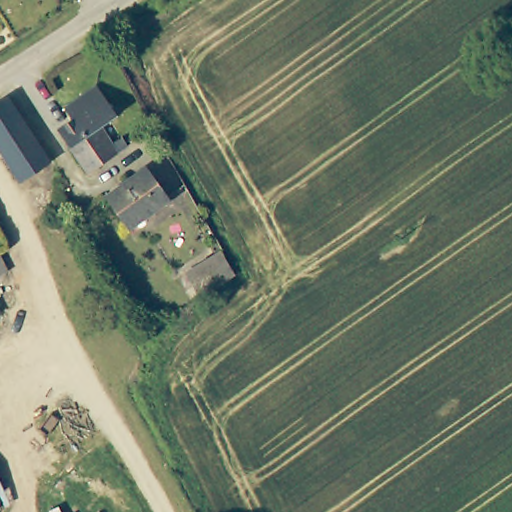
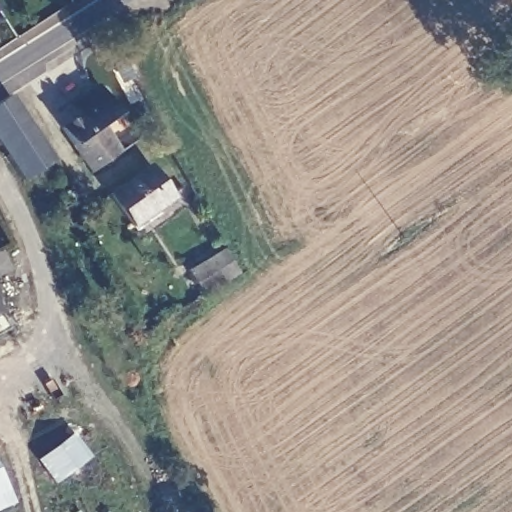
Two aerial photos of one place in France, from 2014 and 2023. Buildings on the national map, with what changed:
unchanged [(120,147),(91,170),(59,130),(73,116),(65,105),(93,81),(101,92),(113,110),(101,123),(112,137),(121,129),(130,140),(120,147)]
unchanged [(12,101),(26,124),(48,157),(44,165),(21,178),(0,147),(0,100),(7,95),(12,101)]
unchanged [(170,200),(134,225),(128,215),(110,190),(138,170),(148,164),(170,200)]
unchanged [(11,270),(0,276),(0,245),(11,270)]
unchanged [(231,274),(197,300),(182,280),(217,254),(231,274)]
unchanged [(3,311),(0,312),(0,305),(3,311)]
new [(49,484),(33,460),(68,433),(86,457),(49,484)]
unchanged [(9,501),(0,506),(0,479),(9,501)]

